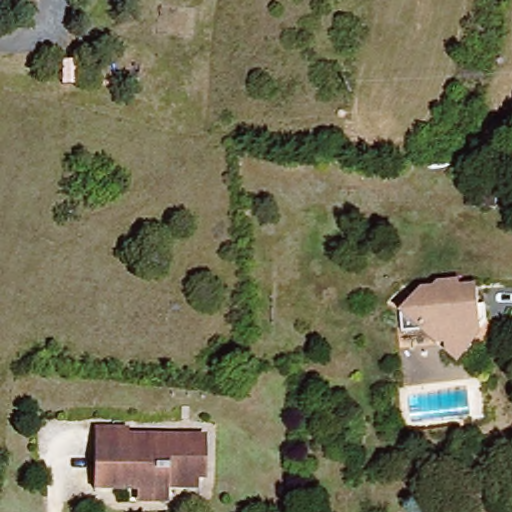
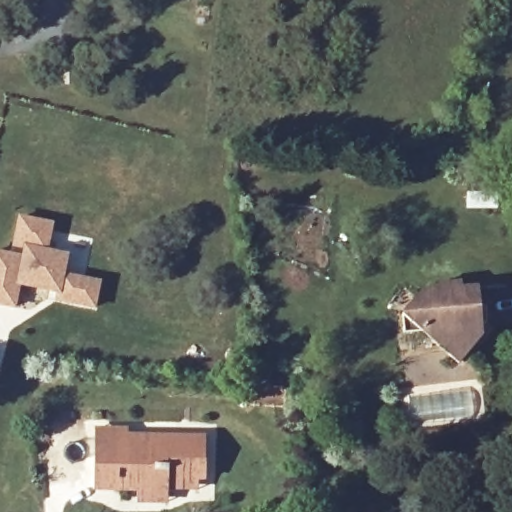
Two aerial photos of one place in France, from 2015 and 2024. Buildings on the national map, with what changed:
new [(17,286),(12,309),(0,306),(0,255),(22,259),(23,250),(12,248),(18,219),(50,226),(45,253),(65,258),(60,278),(97,286),(91,311),(54,303),(45,301),(47,293),(17,286)]
unchanged [(467,343),(470,345),(458,362),(423,335),(406,333),(407,316),(425,293),(430,296),(441,283),(459,281),(460,286),(477,283),(480,298),(487,297),(487,311),(467,343)]
unchanged [(133,496),(122,496),(93,497),(94,449),(95,431),(128,431),(128,442),(203,440),(205,479),(197,481),(197,496),(167,496),(165,508),(135,507),(133,496)]

